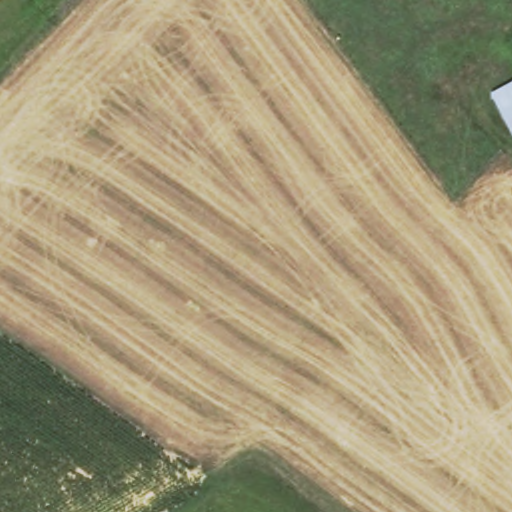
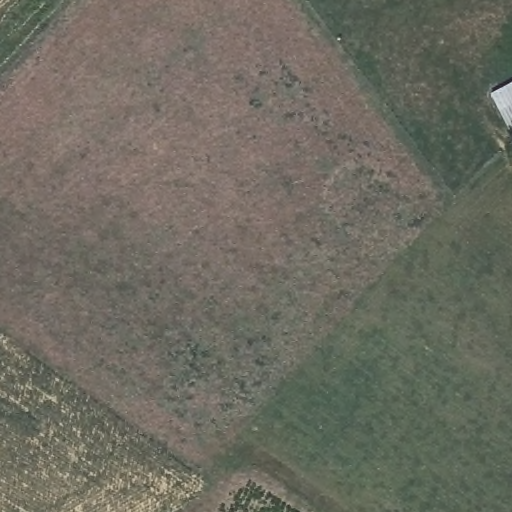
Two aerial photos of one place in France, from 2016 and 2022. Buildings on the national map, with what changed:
unchanged [(512,135),(490,98),(512,87),(512,135)]

